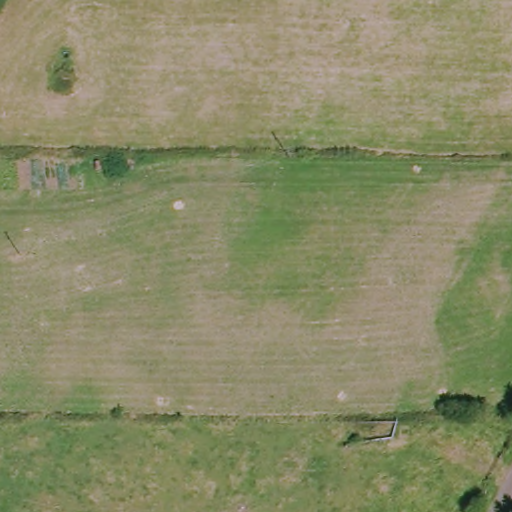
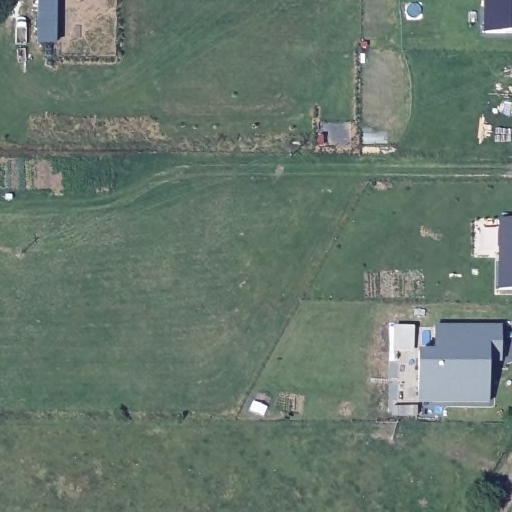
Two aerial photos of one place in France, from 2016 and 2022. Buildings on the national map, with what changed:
new [(38,44),(39,0),(57,0),(56,44),(38,44)]
new [(483,32),(483,0),(512,0),(512,32),(483,32)]
new [(500,288),(499,220),(512,220),(512,289),(500,288)]
new [(502,326),(501,363),(490,363),(490,405),(418,402),(420,351),(437,351),(436,326),(502,326)]

